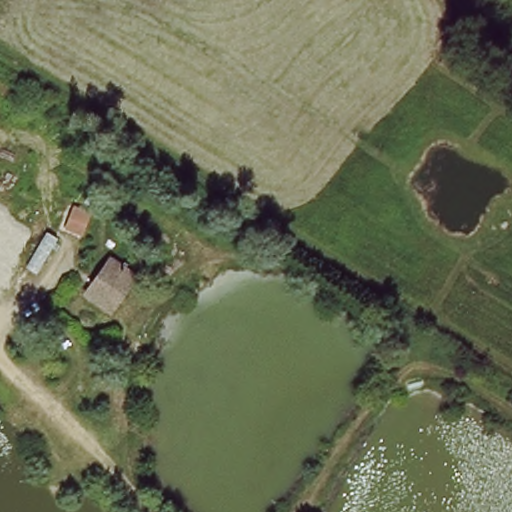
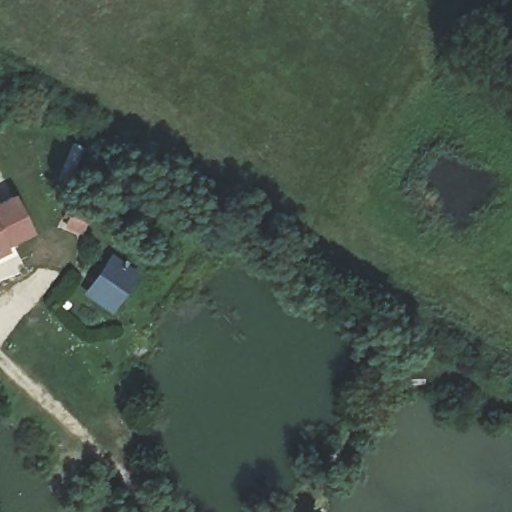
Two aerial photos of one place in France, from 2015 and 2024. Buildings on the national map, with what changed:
new [(0,201),(12,195),(30,233),(0,247),(0,201)]
new [(0,253),(0,247),(3,252),(0,253)]
unchanged [(141,276),(120,310),(95,293),(116,260),(141,276)]

